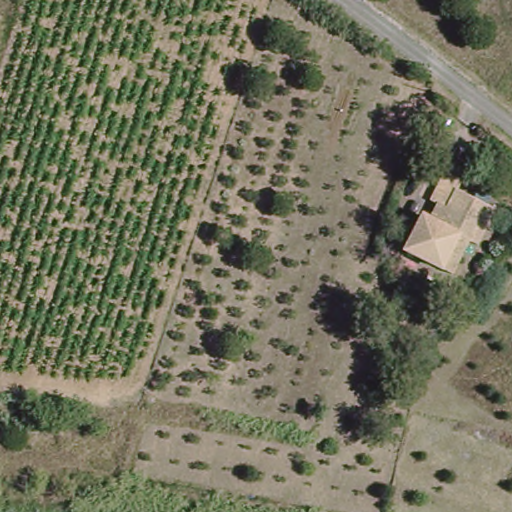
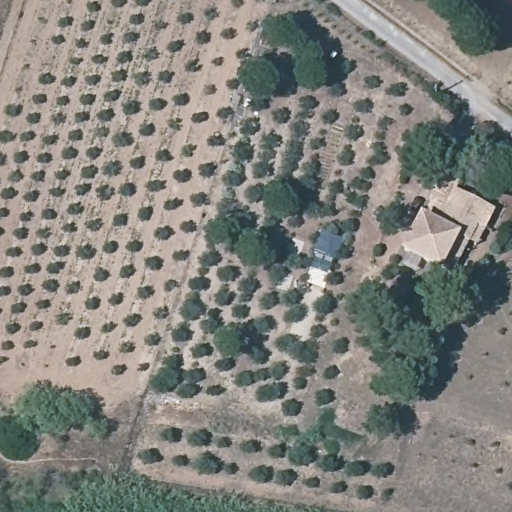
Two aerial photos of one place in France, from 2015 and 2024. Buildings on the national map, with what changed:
unchanged [(405,248),(422,215),(430,218),(438,202),(431,199),(444,173),(461,181),(456,190),(493,209),(476,242),(470,240),(452,274),(442,268),(405,248)]

